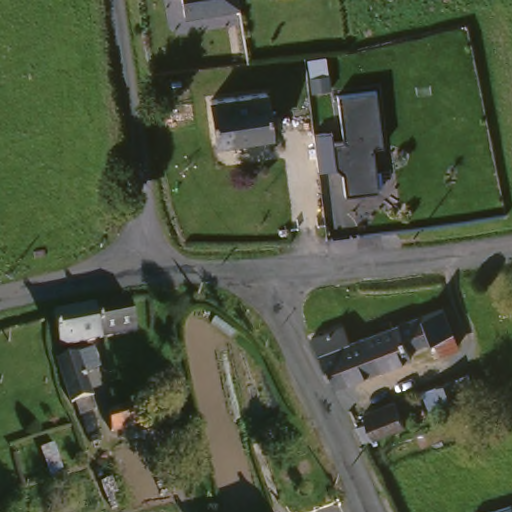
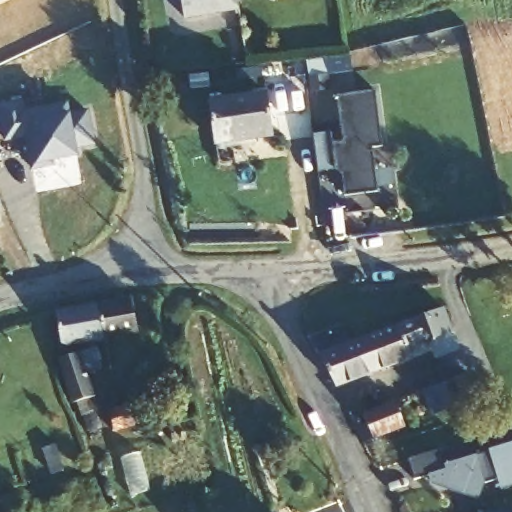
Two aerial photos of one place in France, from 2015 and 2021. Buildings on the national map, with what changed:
unchanged [(186,21),(182,0),(238,0),(241,11),(186,21)]
unchanged [(214,100),(268,94),(275,137),(220,144),(214,100)]
unchanged [(314,139),(333,136),(334,146),(337,146),(344,145),(337,100),(375,94),(384,150),(374,151),(381,195),(349,200),(348,200),(344,179),(344,177),(339,173),(320,175),(314,139)]
new [(27,97),(29,108),(57,105),(57,110),(73,109),(74,115),(92,112),(96,145),(77,147),(78,155),(53,158),(53,163),(32,165),(30,140),(36,140),(35,131),(8,134),(4,100),(27,97)]
unchanged [(100,303),(133,296),(139,325),(106,332),(100,303)]
unchanged [(70,340),(66,321),(63,311),(100,303),(106,332),(70,340)]
unchanged [(417,320),(443,310),(450,332),(437,337),(407,348),(411,358),(382,370),(381,366),(371,338),(417,320)]
unchanged [(338,387),(336,387),(315,342),(349,330),(355,345),(371,338),(381,366),(382,370),(338,387)]
unchanged [(64,358),(84,353),(96,398),(76,403),(64,358)]
unchanged [(410,390),(428,384),(444,378),(451,397),(438,402),(434,404),(416,410),(410,390)]
unchanged [(406,396),(415,422),(400,428),(370,440),(363,421),(374,417),(370,408),(406,396)]
unchanged [(145,402),(151,422),(119,429),(115,408),(122,406),(145,402)]
new [(440,446),(444,462),(512,441),(512,485),(501,488),(498,480),(487,485),(479,502),(433,485),(429,474),(414,477),(406,458),(440,446)]
unchanged [(72,471),(46,477),(36,447),(64,442),(72,471)]
unchanged [(501,510),(501,512),(495,512),(501,510)]

